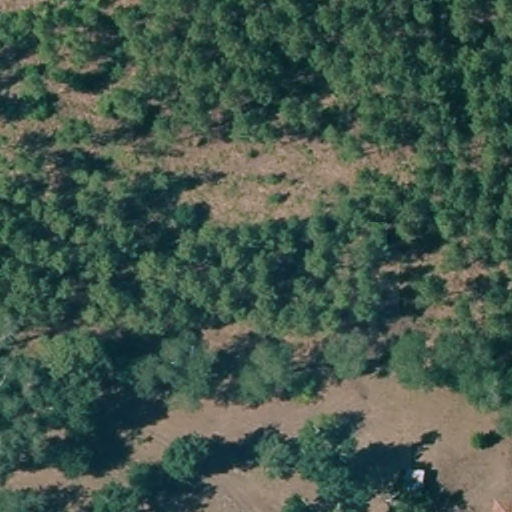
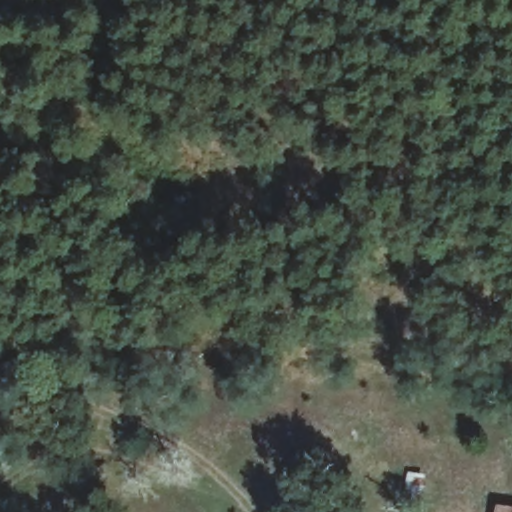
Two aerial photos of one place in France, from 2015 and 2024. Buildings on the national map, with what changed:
unchanged [(498,512),(498,507),(512,510),(512,512),(498,512)]

